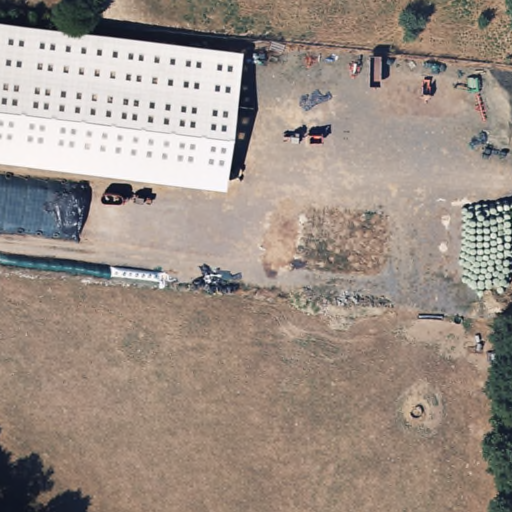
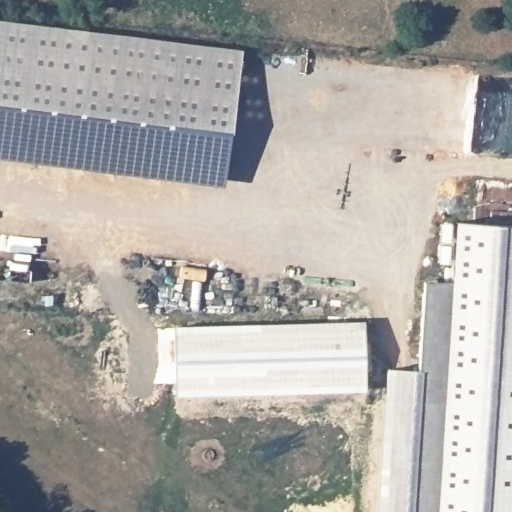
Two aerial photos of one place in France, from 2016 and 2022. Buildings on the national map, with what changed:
unchanged [(242,50),(226,186),(0,155),(0,19),(242,50)]
new [(385,367),(417,370),(423,280),(450,281),(455,222),(512,225),(512,512),(375,512),(385,367)]

